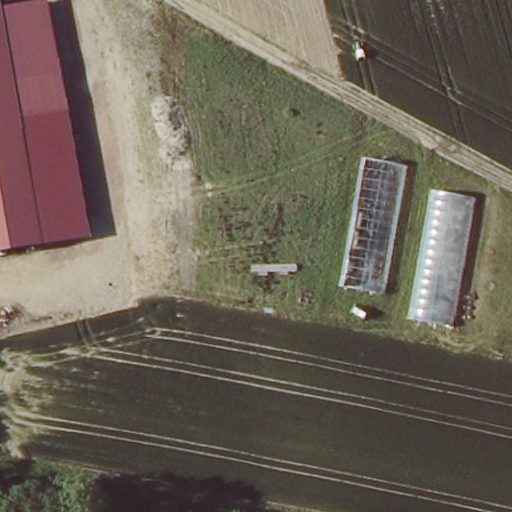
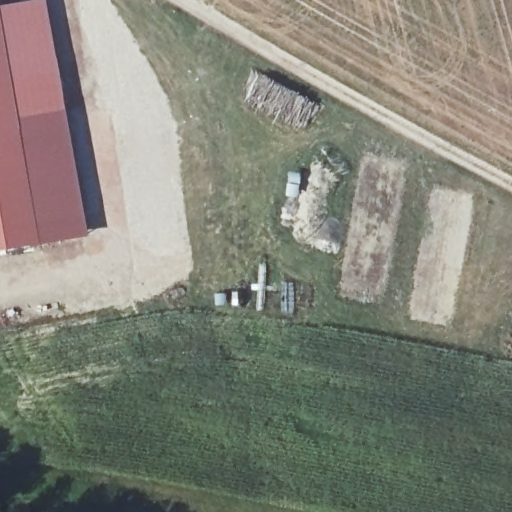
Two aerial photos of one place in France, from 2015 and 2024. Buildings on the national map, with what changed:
unchanged [(2,10),(47,0),(67,111),(20,117),(2,10)]
unchanged [(0,250),(0,30),(39,242),(0,250)]
unchanged [(87,236),(43,244),(20,117),(67,111),(87,236)]
demolished [(368,158),(408,165),(384,295),(338,285),(368,158)]
demolished [(479,199),(454,329),(410,320),(434,188),(479,199)]

